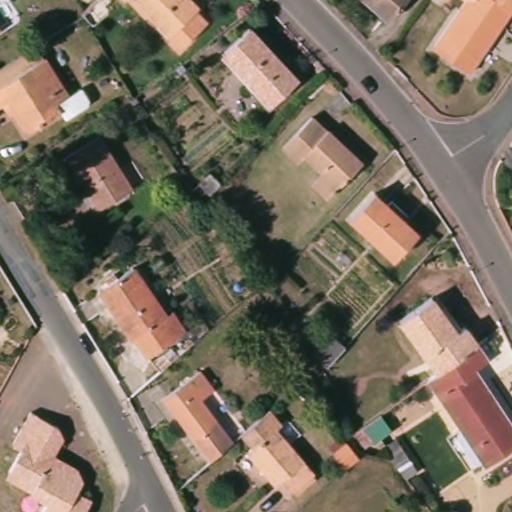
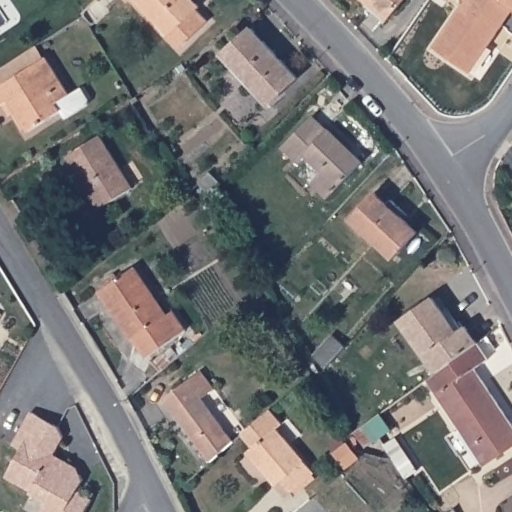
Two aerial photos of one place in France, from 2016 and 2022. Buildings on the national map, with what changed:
unchanged [(194,11),(206,23),(179,49),(132,0),(188,0),(197,9),(194,11)]
unchanged [(359,0),(404,0),(388,22),(359,0)]
unchanged [(465,74),(430,50),(465,0),(490,0),(510,14),(465,74)]
unchanged [(510,14),(490,0),(512,0),(512,15),(510,14)]
unchanged [(251,31),(295,80),(267,105),(222,57),(251,31)]
unchanged [(82,113),(61,125),(56,116),(24,135),(8,104),(0,107),(0,77),(37,53),(43,64),(44,63),(66,102),(77,95),(83,104),(82,113)]
unchanged [(312,114),(359,165),(322,199),(311,187),(322,175),(301,153),(295,159),(280,143),(312,114)]
unchanged [(98,139),(135,189),(110,208),(94,187),(88,192),(66,161),(98,139)]
unchanged [(375,190),(416,232),(390,257),(348,217),(375,190)]
unchanged [(129,272),(156,318),(166,313),(177,333),(140,356),(127,334),(123,336),(96,292),(129,272)]
unchanged [(402,322),(430,296),(457,329),(464,323),(478,344),(444,373),(402,322)]
unchanged [(338,342),(319,361),(307,348),(326,329),(338,342)]
unchanged [(478,344),(488,358),(478,364),(485,375),(449,404),(434,381),(444,373),(478,344)]
unchanged [(198,374),(212,394),(200,403),(217,426),(234,448),(211,467),(209,468),(191,445),(159,402),(198,374)]
unchanged [(485,375),(512,418),(512,448),(489,464),(449,404),(485,375)]
unchanged [(84,512),(39,512),(44,503),(31,494),(33,491),(6,477),(20,449),(12,443),(30,411),(56,424),(65,437),(55,454),(78,467),(81,483),(76,491),(91,500),(84,512)]
unchanged [(238,445),(267,422),(274,431),(269,435),(305,479),(281,499),(265,479),(258,484),(238,459),(245,454),(238,445)]

